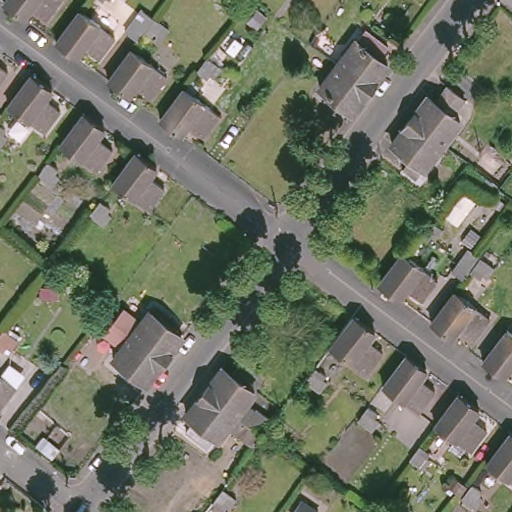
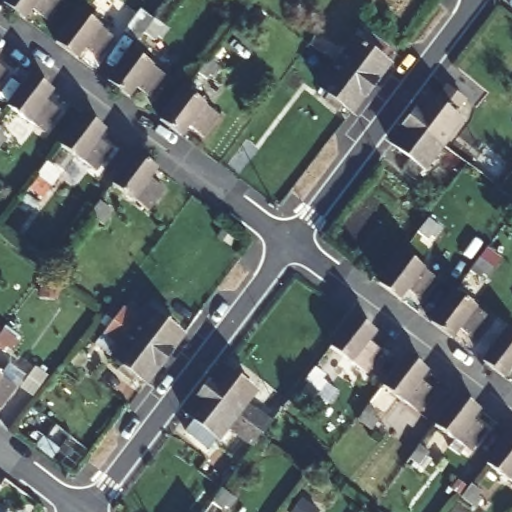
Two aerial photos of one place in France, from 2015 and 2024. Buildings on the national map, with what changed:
unchanged [(60,0),(44,22),(29,11),(21,21),(0,6),(5,0),(60,0)]
unchanged [(84,0),(99,0),(104,3),(98,11),(94,8),(90,13),(80,4),(84,0)]
unchanged [(80,31),(88,19),(109,34),(100,46),(104,49),(87,72),(72,60),(64,70),(43,54),(67,22),(80,31)]
unchanged [(157,41),(150,50),(146,47),(142,51),(132,44),(125,53),(114,45),(129,23),(141,32),(142,31),(157,41)]
unchanged [(367,90),(334,65),(352,42),(360,32),(383,49),(375,59),(384,67),(367,90)]
unchanged [(4,52),(0,58),(0,50),(4,52)]
unchanged [(219,70),(212,79),(207,76),(205,80),(194,72),(204,59),(219,70)]
unchanged [(139,75),(155,88),(139,110),(124,99),(115,108),(95,93),(120,61),(139,75)]
unchanged [(322,101),(325,96),(316,88),(334,65),(367,90),(349,114),(339,106),(335,112),(322,101)]
unchanged [(11,73),(0,88),(0,66),(11,73)]
unchanged [(35,71),(55,86),(48,97),(64,108),(48,129),(32,117),(30,117),(11,103),(35,71)]
unchanged [(425,97),(433,104),(445,88),(463,102),(450,118),(457,123),(440,146),(407,120),(425,97)]
unchanged [(200,104),(200,105),(217,118),(201,139),(185,127),(177,138),(157,122),(181,89),(200,104)]
unchanged [(5,111),(0,118),(0,108),(5,111)]
unchanged [(82,110),(102,125),(95,135),(110,147),(95,168),(79,156),(78,157),(58,142),(82,110)]
unchanged [(5,132),(10,136),(2,144),(0,143),(0,120),(9,128),(5,132)]
unchanged [(395,157),(399,151),(389,144),(407,120),(440,146),(422,170),(412,163),(409,168),(395,157)]
unchanged [(134,154),(140,159),(154,169),(147,179),(162,190),(145,212),(110,185),(134,154)]
unchanged [(45,159),(55,166),(52,171),(57,175),(50,183),(35,172),(45,159)]
unchanged [(97,202),(107,210),(104,214),(107,218),(101,225),(87,215),(97,202)]
unchanged [(440,231),(432,240),(428,237),(425,242),(415,234),(425,220),(440,231)]
unchanged [(415,269),(415,270),(430,281),(414,301),(399,290),(391,300),(370,285),(395,254),(415,269)]
unchanged [(480,289),(475,285),(472,291),(462,283),(456,291),(445,282),(462,261),(472,269),(487,280),(480,289)]
unchanged [(482,330),(467,351),(452,339),(444,350),(423,334),(447,303),(482,330)]
unchanged [(167,355),(134,330),(152,307),(162,314),(165,307),(180,318),(175,324),(185,331),(167,355)]
unchanged [(351,312),(370,327),(364,337),(380,348),(363,370),(328,343),(351,312)]
unchanged [(122,366),(125,361),(115,354),(134,330),(167,355),(148,379),(139,372),(135,376),(122,366)]
unchanged [(512,372),(508,369),(501,379),(484,366),(480,364),(505,332),(512,338),(512,372)]
unchanged [(75,341),(98,357),(89,370),(67,353),(75,341)]
unchanged [(9,366),(4,363),(0,368),(0,347),(15,358),(9,366)]
unchanged [(403,356),(424,372),(417,382),(432,392),(415,414),(380,387),(403,356)]
unchanged [(229,369),(234,363),(248,374),(244,380),(253,388),(243,401),(252,409),(253,407),(270,420),(262,431),(202,386),(220,363),(229,369)]
unchanged [(312,364),(322,371),(318,377),(322,380),(316,388),(302,378),(312,364)]
unchanged [(185,427),(194,417),(185,410),(202,386),(262,431),(253,442),(226,422),(217,435),(210,445),(185,427)]
unchanged [(456,395),(475,410),(469,420),(485,432),(468,454),(432,427),(456,395)]
unchanged [(13,406),(0,423),(0,396),(13,406)]
unchanged [(364,407),(374,415),(370,420),(375,423),(369,432),(354,421),(364,407)]
unchanged [(512,482),(483,461),(507,429),(512,433),(512,482)]
unchanged [(417,446),(427,454),(424,459),(428,462),(421,471),(406,460),(417,446)]
unchanged [(467,481),(477,488),(474,492),(477,495),(471,504),(457,494),(467,481)]
unchanged [(220,491),(234,501),(227,510),(224,507),(220,512),(210,504),(220,491)]

